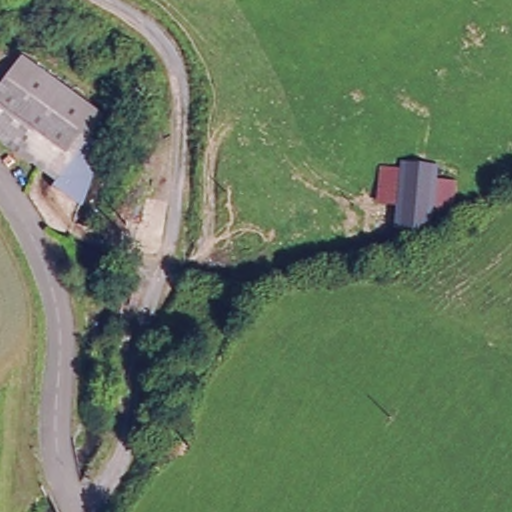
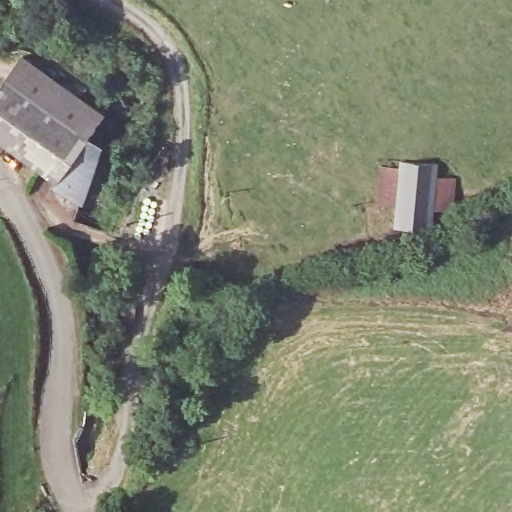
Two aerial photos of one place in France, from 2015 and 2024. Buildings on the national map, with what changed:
unchanged [(0,81),(23,52),(100,114),(77,145),(54,176),(0,132),(0,81)]
unchanged [(50,181),(54,176),(77,145),(88,154),(78,200),(50,181)]
unchanged [(398,210),(399,204),(377,201),(379,166),(402,169),(402,166),(441,169),(441,180),(458,182),(454,215),(436,214),(433,231),(396,228),(398,210)]

